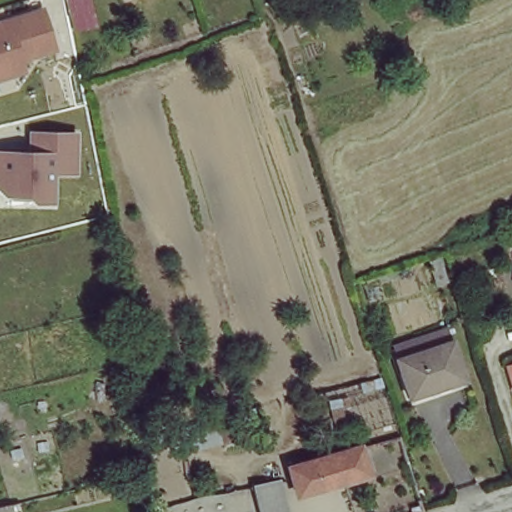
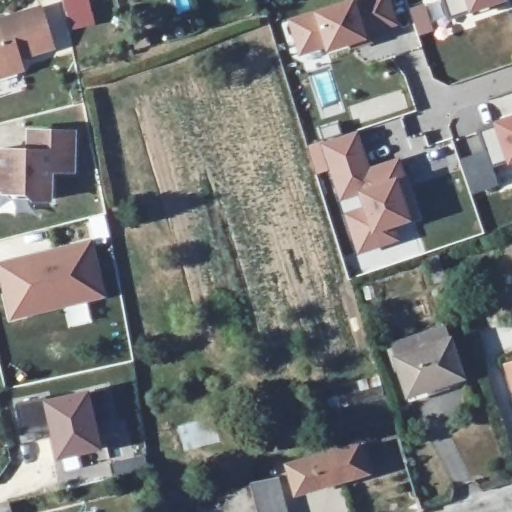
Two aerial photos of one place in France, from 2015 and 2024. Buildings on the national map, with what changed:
unchanged [(88,22),(68,25),(63,0),(84,0),(88,22)]
new [(375,0),(384,0),(395,36),(370,44),(372,53),(325,67),(322,57),(298,65),(287,29),(375,0)]
new [(501,4),(505,16),(471,30),(466,19),(448,25),(440,0),(511,0),(501,4)]
unchanged [(0,70),(0,21),(43,6),(57,47),(0,70)]
new [(491,167),(497,185),(472,194),(460,160),(483,151),(477,132),(494,126),(493,123),(512,117),(512,163),(508,164),(507,161),(491,167)]
unchanged [(33,152),(33,132),(78,134),(77,171),(55,171),(55,200),(37,200),(30,192),(6,192),(0,185),(0,152),(33,152)]
new [(358,255),(329,169),(316,173),(309,146),(356,133),(369,168),(398,159),(418,218),(393,227),(398,241),(358,255)]
new [(89,239),(103,297),(7,321),(0,292),(0,261),(89,239)]
unchanged [(406,407),(393,366),(390,354),(445,336),(450,348),(462,388),(406,407)]
new [(56,460),(50,430),(23,434),(15,406),(45,398),(46,402),(87,392),(88,396),(106,391),(111,420),(95,424),(101,450),(56,460)]
unchanged [(367,472),(296,493),(287,466),(358,445),(367,472)]
unchanged [(282,485),(289,512),(261,512),(256,491),(282,485)]

